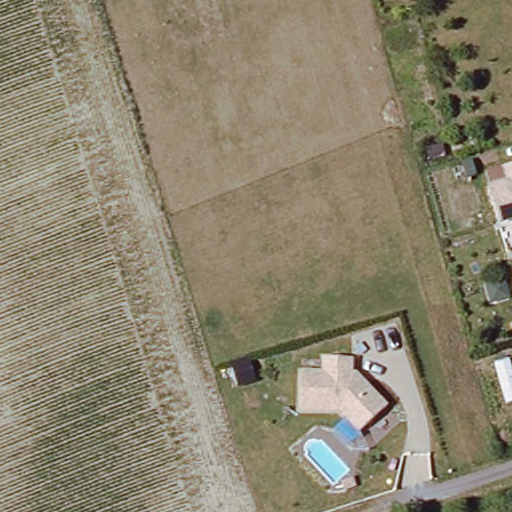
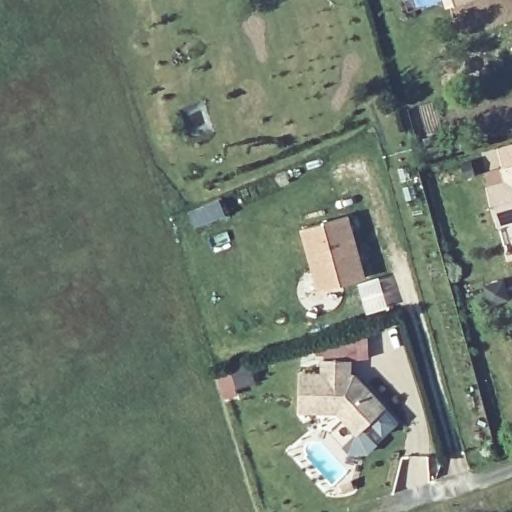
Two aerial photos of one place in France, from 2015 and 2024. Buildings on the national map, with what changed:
unchanged [(501,226),(490,188),(509,183),(506,169),(512,168),(512,223),(501,226)]
new [(363,276),(319,288),(302,226),(346,214),(363,276)]
unchanged [(303,372),(325,373),(325,358),(353,358),(352,374),(357,374),(388,407),(361,432),(340,410),(302,409),(303,372)]

